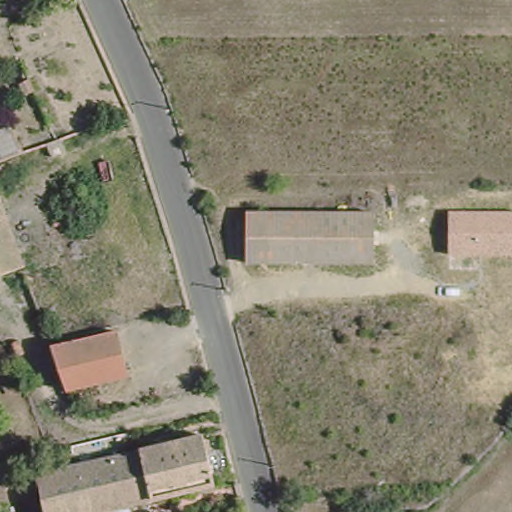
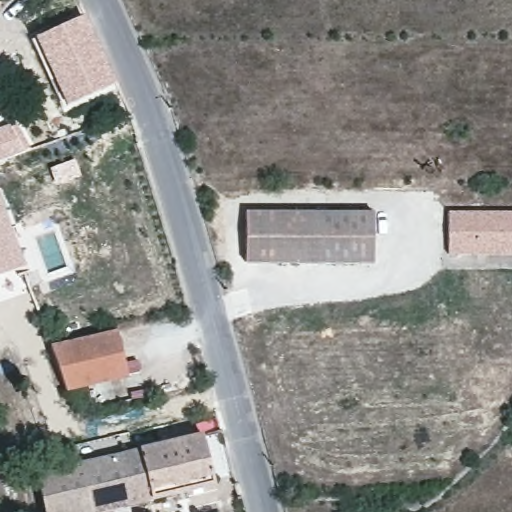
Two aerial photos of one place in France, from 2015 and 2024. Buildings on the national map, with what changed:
new [(83,13),(115,83),(64,107),(32,37),(83,13)]
unchanged [(33,82),(38,94),(26,99),(21,87),(33,82)]
unchanged [(18,152),(0,159),(0,130),(7,127),(18,152)]
unchanged [(46,144),(58,139),(62,151),(50,155),(46,144)]
new [(75,157),(81,176),(55,185),(49,167),(75,157)]
unchanged [(0,274),(0,211),(6,230),(20,267),(0,274)]
unchanged [(449,254),(449,211),(512,211),(512,256),(449,254)]
unchanged [(371,215),(371,266),(245,267),(244,216),(371,215)]
unchanged [(128,377),(65,391),(50,348),(117,333),(128,377)]
unchanged [(100,459),(201,437),(212,484),(173,494),(113,508),(114,512),(43,512),(35,475),(100,459)]
unchanged [(0,505),(0,496),(2,504),(0,505)]

